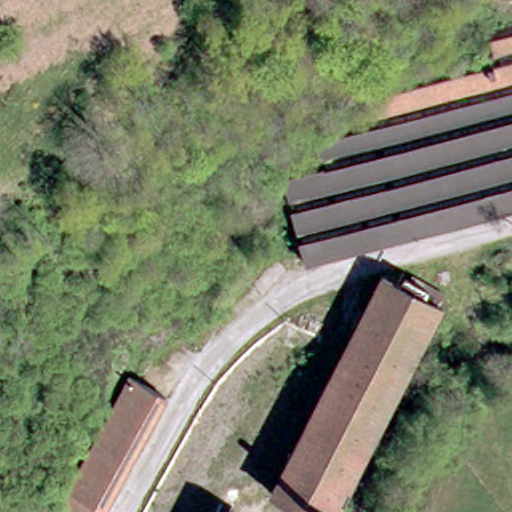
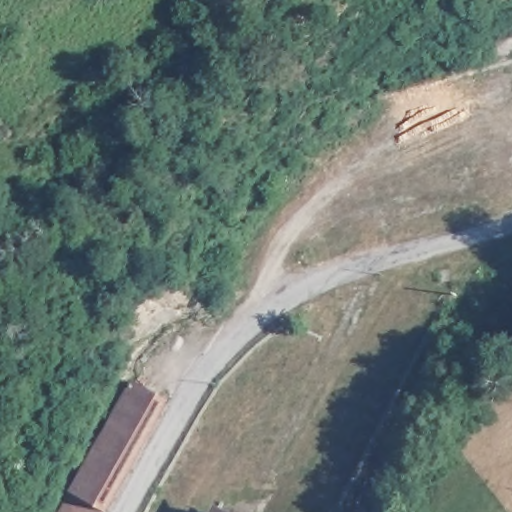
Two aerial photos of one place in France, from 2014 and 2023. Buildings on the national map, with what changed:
demolished [(475,39),(512,29),(512,80),(348,126),(341,99),(481,61),(475,39)]
demolished [(303,262),(280,180),(357,159),(348,126),(512,80),(512,204),(303,262)]
demolished [(369,327),(392,282),(394,282),(410,290),(413,283),(440,297),(437,303),(454,313),(392,433),(378,459),(351,512),(301,512),(280,502),(279,501),(357,348),(369,327)]
unchanged [(150,344),(165,327),(179,337),(163,355),(150,344)]
unchanged [(65,495),(97,437),(130,383),(162,402),(97,512),(53,512),(65,495)]

